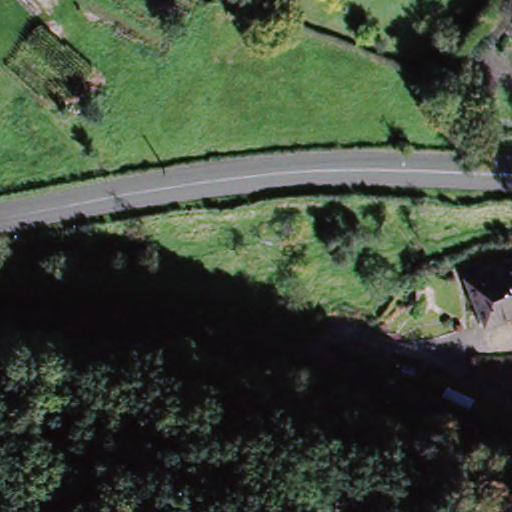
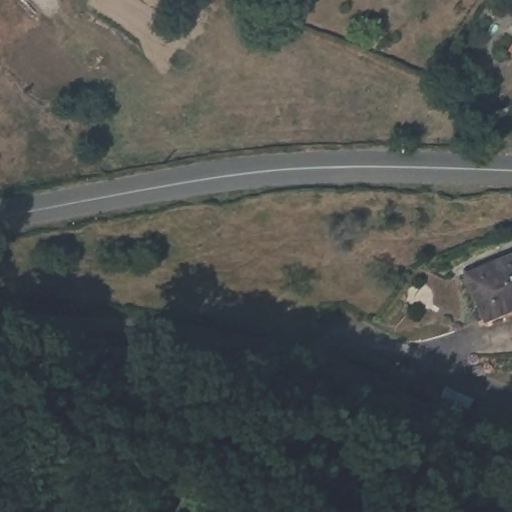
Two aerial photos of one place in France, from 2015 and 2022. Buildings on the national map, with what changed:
unchanged [(499,318),(478,327),(460,280),(512,258),(512,312),(499,318)]

